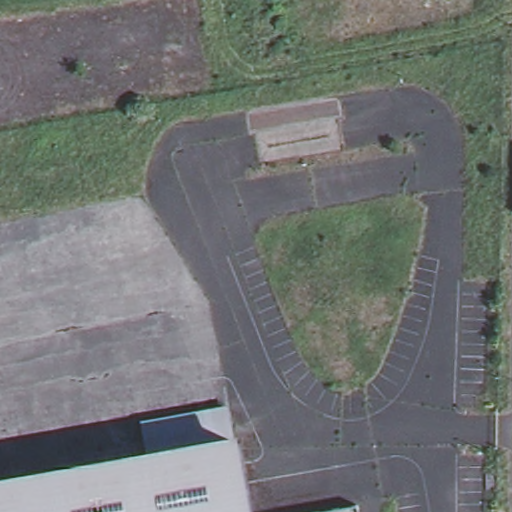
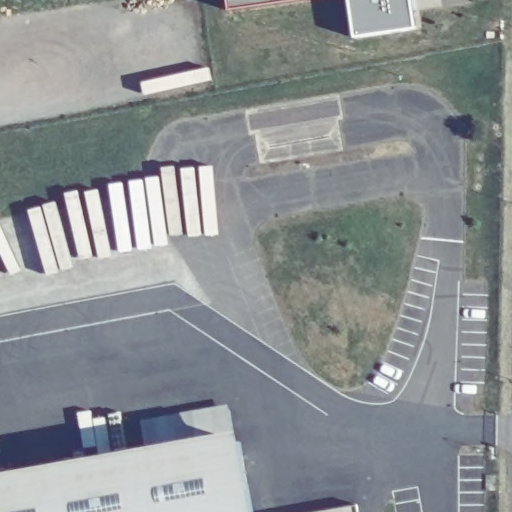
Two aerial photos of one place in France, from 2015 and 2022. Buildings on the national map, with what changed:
new [(230,12),(228,0),(314,0),(230,12)]
new [(355,39),(349,0),(411,0),(416,31),(355,39)]
unchanged [(148,460),(142,427),(230,411),(236,444),(241,443),(253,512),(0,512),(0,487),(148,460)]
unchanged [(359,512),(327,512),(357,507),(359,512)]

